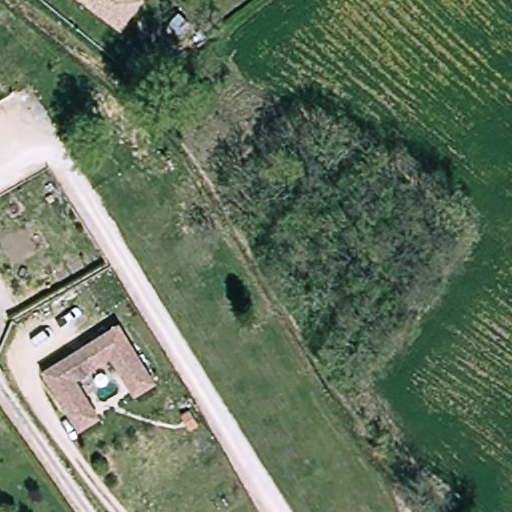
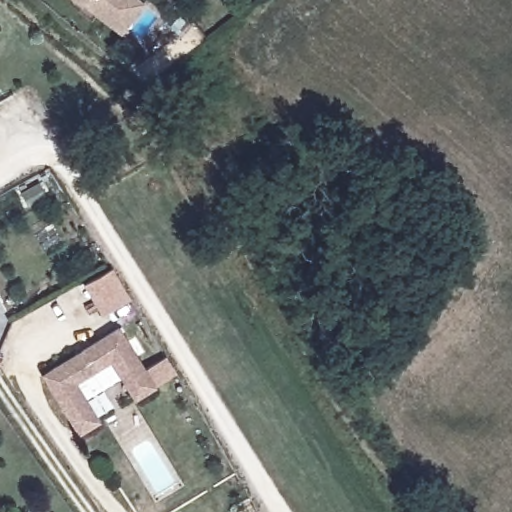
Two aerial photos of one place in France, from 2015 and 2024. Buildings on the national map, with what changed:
unchanged [(119,31),(107,22),(88,8),(78,0),(140,0),(141,1),(119,31)]
new [(113,270),(131,300),(105,316),(86,285),(113,270)]
unchanged [(126,330),(159,388),(140,399),(118,360),(81,382),(102,420),(83,432),(49,372),(126,330)]

